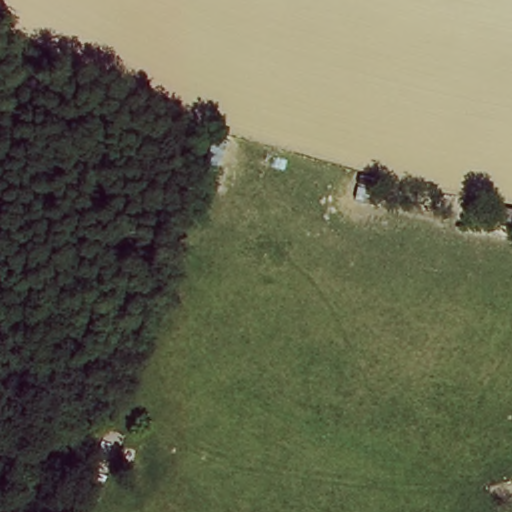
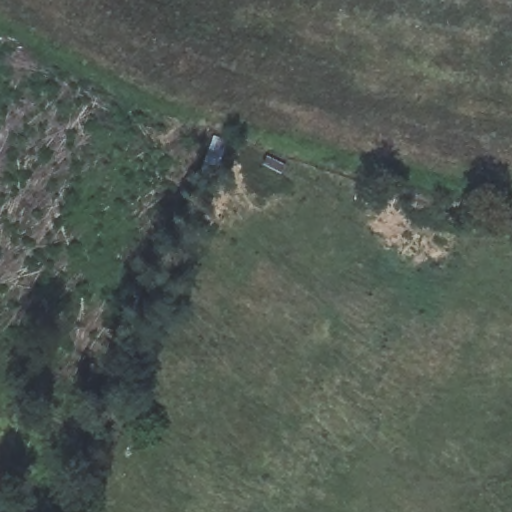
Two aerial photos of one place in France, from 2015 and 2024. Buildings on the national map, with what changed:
unchanged [(229,138),(213,182),(197,177),(212,131),(229,138)]

